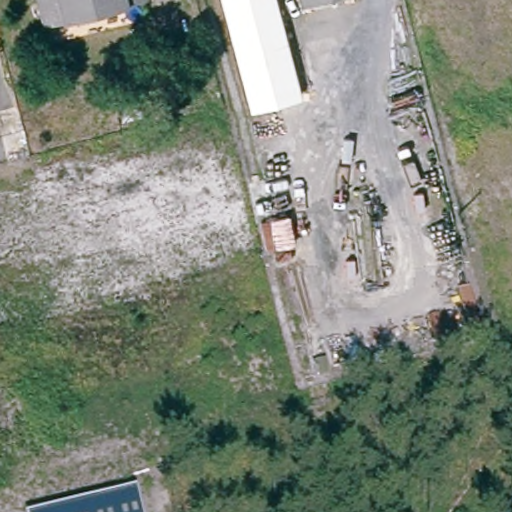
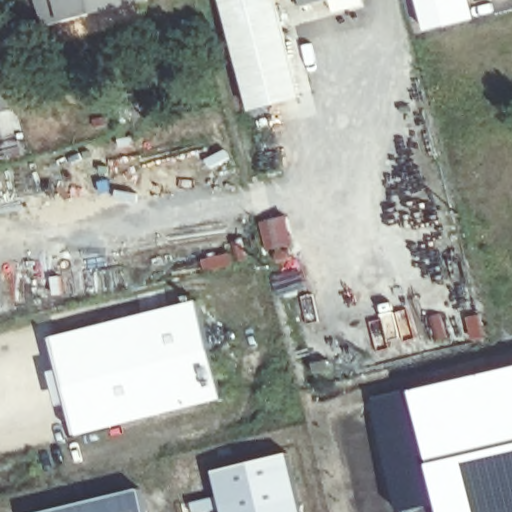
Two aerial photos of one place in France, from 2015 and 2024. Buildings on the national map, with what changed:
unchanged [(143,5),(43,30),(36,0),(142,0),(143,5)]
unchanged [(255,113),(252,101),(224,0),(276,0),(300,89),(303,100),(255,113)]
unchanged [(305,14),(302,0),(358,0),(305,14)]
new [(477,20),(427,33),(419,0),(471,0),(477,20)]
new [(224,398),(78,434),(54,336),(199,300),(224,398)]
new [(512,365),(512,443),(427,462),(410,389),(512,365)]
new [(439,512),(427,462),(512,443),(512,512),(439,512)]
new [(303,512),(225,512),(215,470),(288,453),(303,512)]
unchanged [(146,512),(40,512),(140,488),(146,512)]

